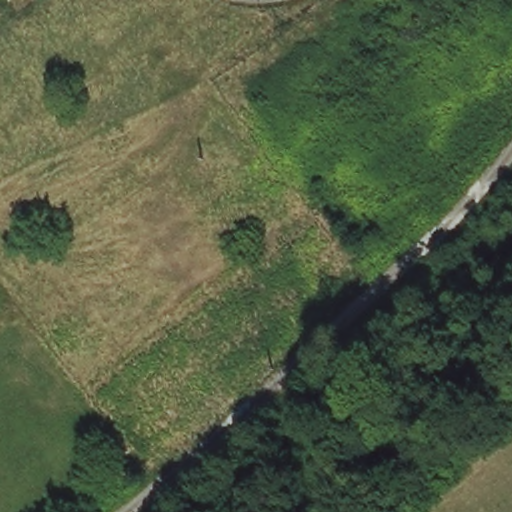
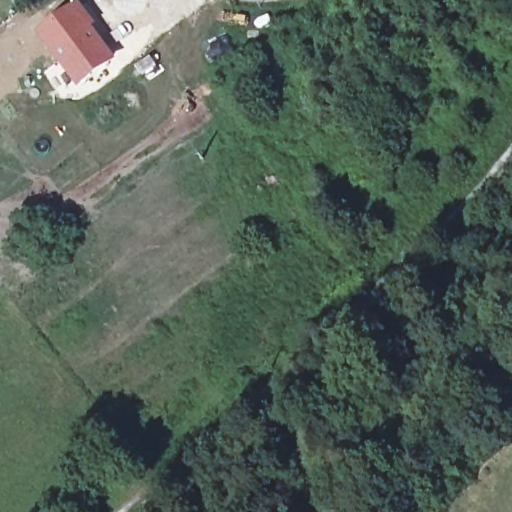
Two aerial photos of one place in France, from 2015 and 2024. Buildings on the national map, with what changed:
new [(78,0),(97,25),(94,27),(115,57),(77,87),(37,34),(78,0)]

